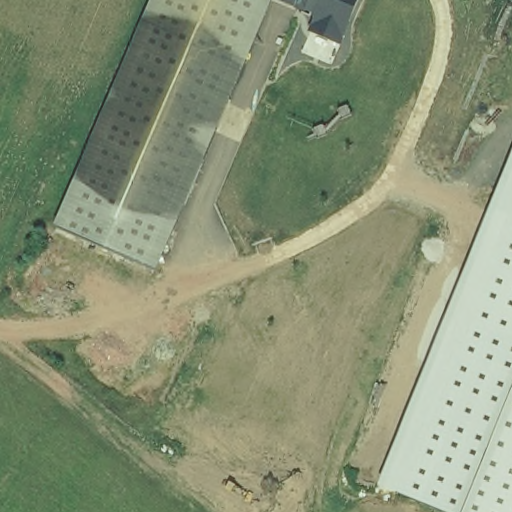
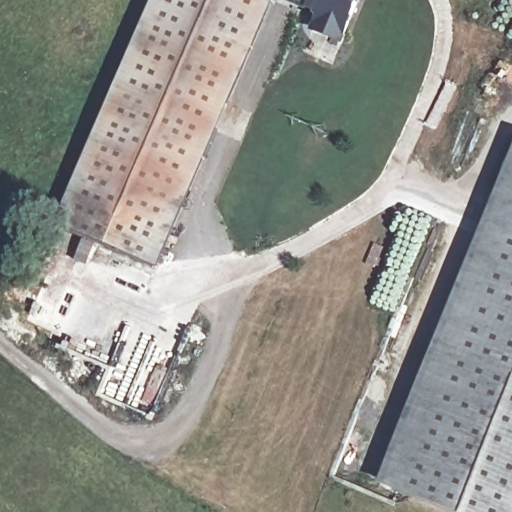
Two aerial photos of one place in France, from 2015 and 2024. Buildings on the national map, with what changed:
unchanged [(158,269),(55,227),(153,0),(277,0),(158,269)]
unchanged [(347,40),(305,27),(310,10),(288,0),(364,0),(347,40)]
unchanged [(512,157),(512,512),(450,512),(379,483),(512,157)]

